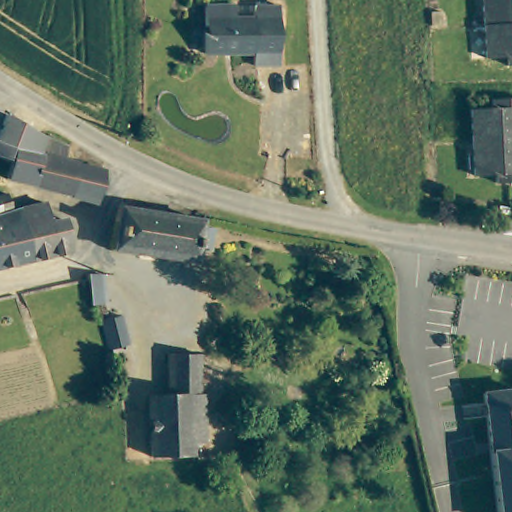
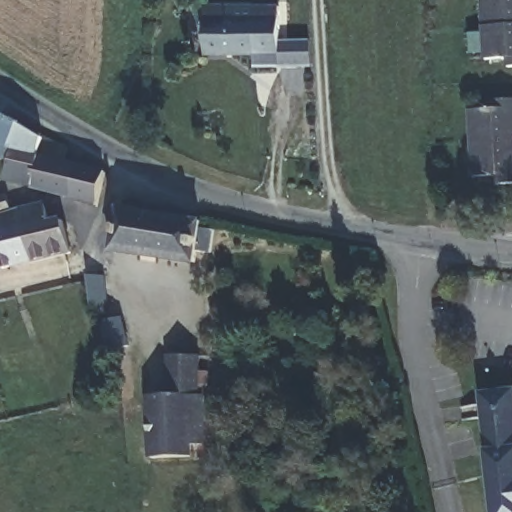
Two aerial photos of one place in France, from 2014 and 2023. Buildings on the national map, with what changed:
unchanged [(498,26),(487,26),(485,0),(512,0),(512,25),(498,26)]
unchanged [(207,5),(237,5),(237,17),(255,17),(255,5),(280,4),(281,64),(256,65),(256,52),(208,53),(207,5)]
unchanged [(489,60),(487,26),(498,26),(512,25),(512,58),(489,60)]
unchanged [(475,111),(498,111),(497,102),(512,102),(512,143),(476,143),(475,111)]
unchanged [(72,203),(41,193),(9,182),(12,165),(0,160),(0,134),(6,117),(49,143),(81,157),(80,167),(72,203)]
unchanged [(512,143),(512,187),(500,188),(500,176),(478,177),(476,143),(512,143)]
unchanged [(108,174),(99,209),(72,203),(80,167),(108,174)]
unchanged [(64,222),(69,258),(0,272),(0,195),(10,194),(13,213),(46,207),(51,225),(64,222)]
unchanged [(205,220),(202,265),(202,266),(117,256),(125,205),(205,220)]
unchanged [(108,322),(101,323),(93,323),(91,303),(90,290),(106,289),(108,322)]
unchanged [(124,361),(108,364),(101,330),(118,327),(124,361)]
unchanged [(149,402),(171,398),(166,361),(184,359),(182,338),(199,336),(199,352),(202,396),(188,399),(192,438),(194,451),(178,453),(155,455),(149,402)]
unchanged [(512,390),(512,512),(494,512),(482,395),(512,390)]

